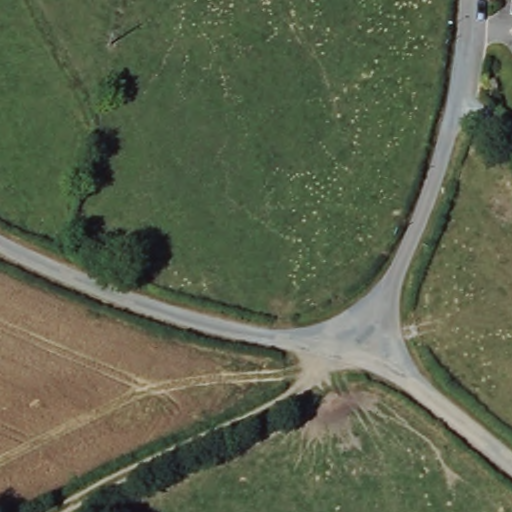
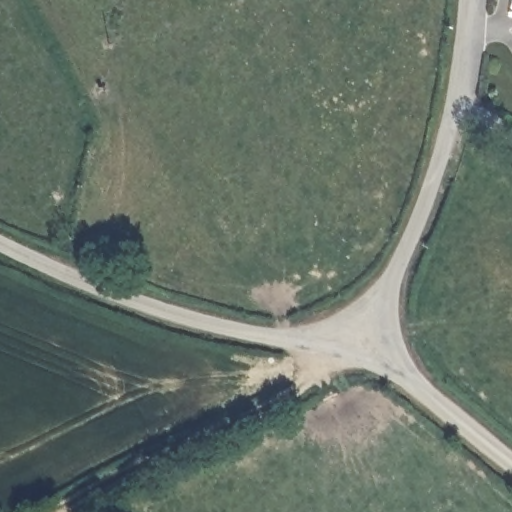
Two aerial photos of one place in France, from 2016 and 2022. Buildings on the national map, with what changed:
[]

